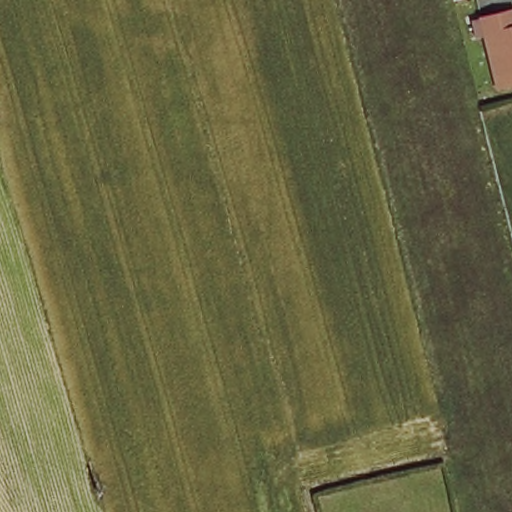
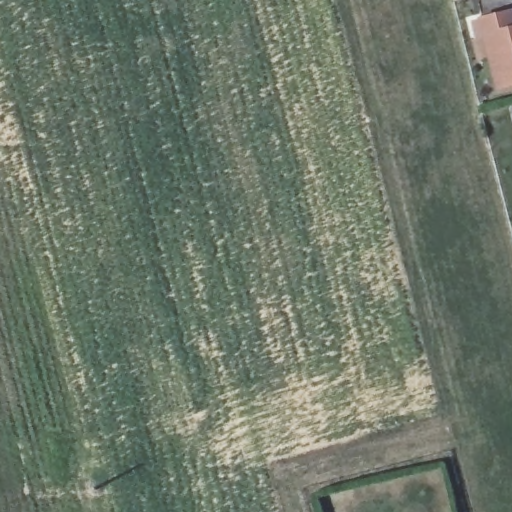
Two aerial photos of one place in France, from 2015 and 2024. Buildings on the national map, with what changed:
unchanged [(507,10),(512,9),(512,31),(507,10)]
unchanged [(502,87),(483,17),(507,10),(512,31),(512,85),(502,87)]

